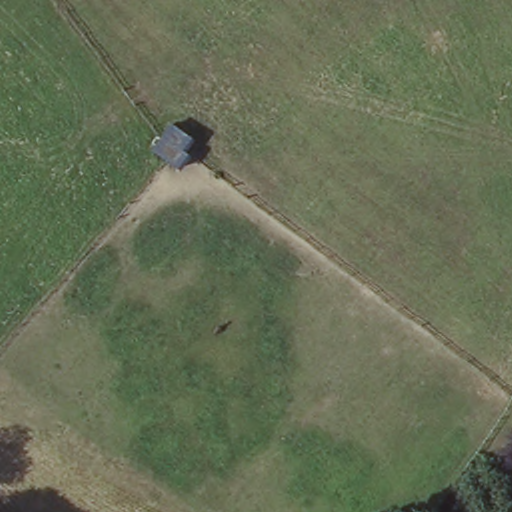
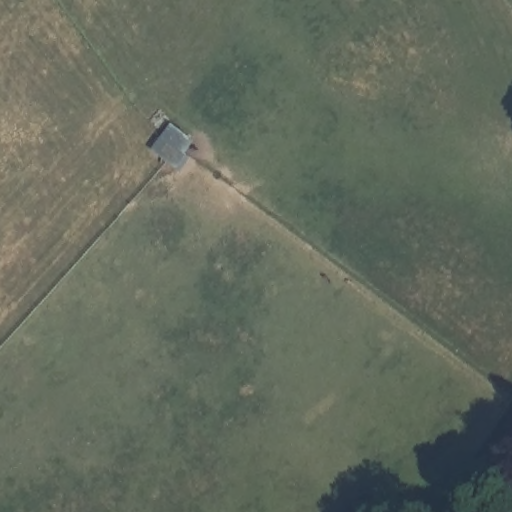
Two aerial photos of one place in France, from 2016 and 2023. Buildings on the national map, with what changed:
unchanged [(169,126),(187,141),(177,154),(186,161),(176,174),(148,154),(169,126)]

